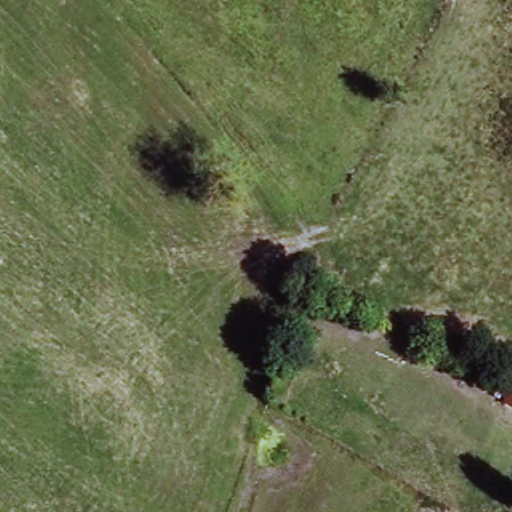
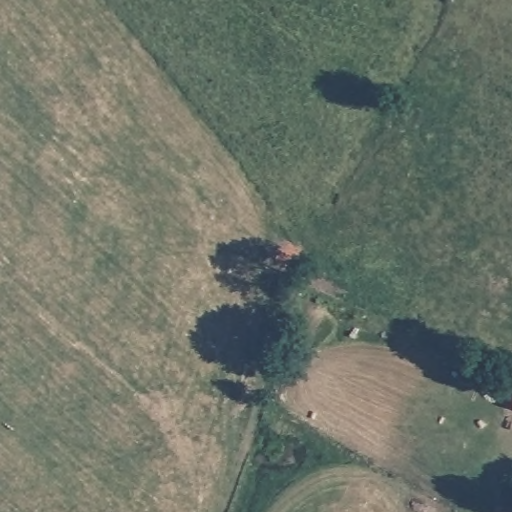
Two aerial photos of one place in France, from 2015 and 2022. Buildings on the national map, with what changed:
unchanged [(499,406),(512,381),(512,412),(499,406)]

